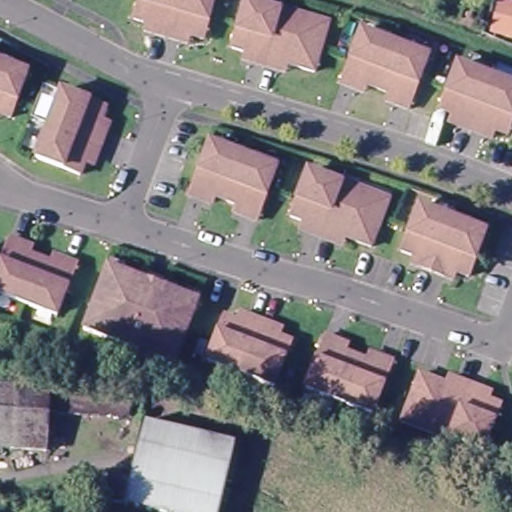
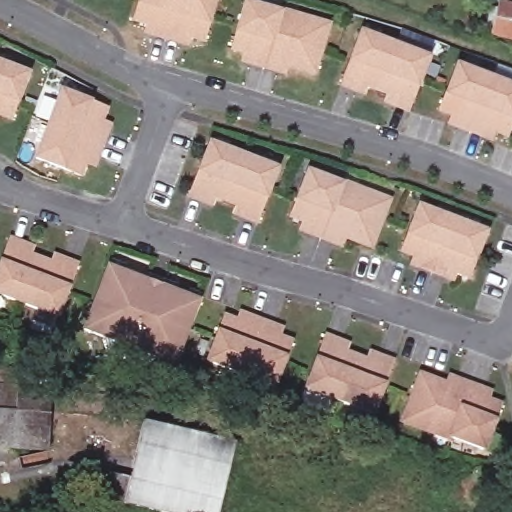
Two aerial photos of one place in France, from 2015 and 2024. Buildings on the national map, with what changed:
unchanged [(183,39),(180,48),(151,39),(154,31),(133,25),(140,0),(216,0),(203,45),(183,39)]
unchanged [(484,29),(491,0),(497,0),(512,4),(512,36),(484,29)]
unchanged [(277,19),(277,16),(328,30),(314,80),(279,70),(277,78),(248,70),(250,61),(229,56),(243,9),(277,19)]
unchanged [(409,116),(393,110),(396,102),(359,89),(356,96),(340,91),(361,38),(429,63),(409,116)]
unchanged [(512,94),(512,114),(502,142),(482,135),(479,143),(451,132),(454,124),(434,116),(451,71),(512,94)]
unchanged [(0,124),(0,73),(26,82),(10,128),(0,124)]
unchanged [(98,132),(105,135),(95,163),(87,160),(80,180),(34,163),(59,96),(104,112),(98,132)]
unchanged [(208,196),(204,204),(189,198),(208,145),(243,158),(226,203),(208,196)]
unchanged [(243,158),(277,170),(258,223),(242,218),(244,210),(226,203),(243,158)]
unchanged [(304,238),(306,230),(287,223),(303,177),(335,189),(336,187),(338,188),(318,244),(304,238)]
unchanged [(338,188),(387,205),(369,253),(335,241),(332,249),(318,244),(338,188)]
unchanged [(416,272),(419,264),(399,257),(416,213),(449,225),(430,277),(416,272)]
unchanged [(449,225),(483,237),(467,282),(448,275),(444,283),(430,277),(449,225)]
unchanged [(0,298),(0,259),(7,240),(21,245),(19,253),(56,267),(59,259),(74,264),(55,318),(0,298)]
unchanged [(197,305),(174,368),(83,335),(106,272),(142,285),(157,291),(197,305)]
unchanged [(278,389),(244,377),(209,364),(225,318),(246,326),(249,318),(278,328),(274,336),(295,343),(278,389)]
unchanged [(337,356),(374,369),(378,361),(393,367),(374,420),(305,395),(324,342),(340,348),(337,356)]
unchanged [(0,365),(28,367),(58,369),(53,451),(0,447),(0,365)]
unchanged [(487,389),(484,397),(504,405),(487,450),(454,438),(454,440),(404,423),(422,375),(456,387),(459,379),(473,384),(487,389)]
unchanged [(129,416),(61,409),(63,389),(130,394),(129,416)]
unchanged [(114,472),(136,477),(148,425),(240,446),(224,512),(149,512),(129,508),(129,504),(108,499),(114,472)]

